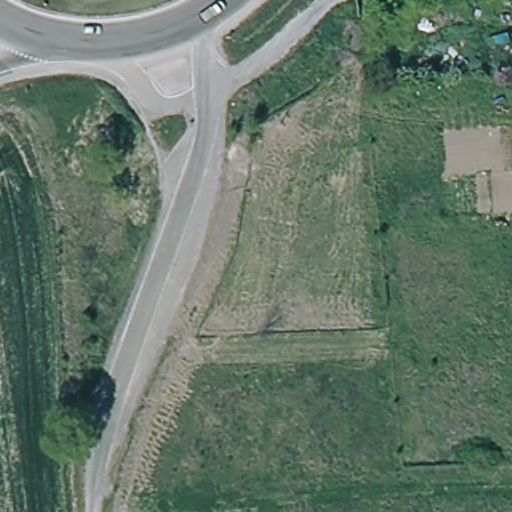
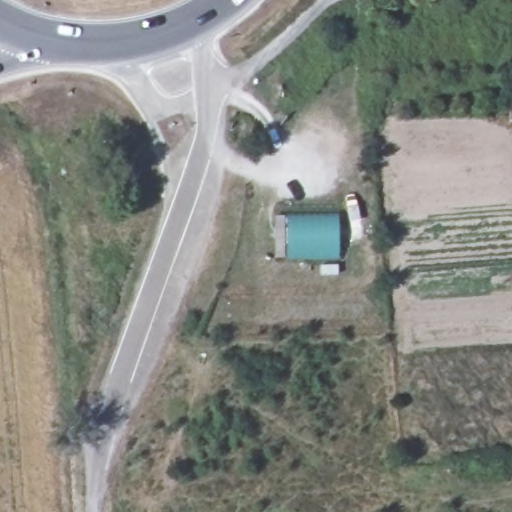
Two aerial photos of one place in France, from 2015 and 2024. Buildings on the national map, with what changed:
new [(275,256),(274,214),(338,215),(339,255),(275,256)]

